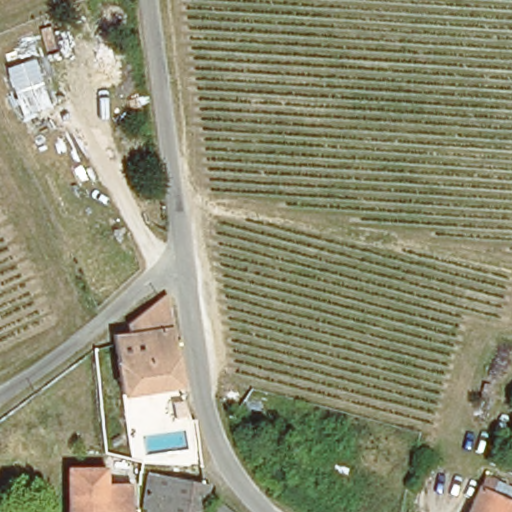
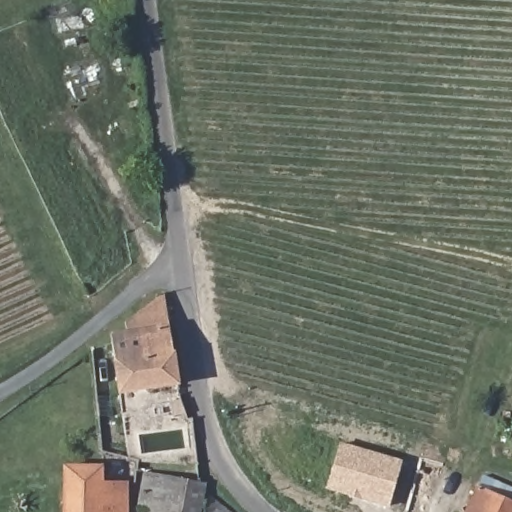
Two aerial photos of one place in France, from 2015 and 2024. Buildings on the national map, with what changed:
unchanged [(119,395),(111,337),(125,334),(123,322),(163,295),(167,327),(176,386),(119,395)]
unchanged [(193,459),(188,421),(200,419),(206,457),(193,459)]
new [(404,461),(390,509),(327,491),(341,443),(404,461)]
unchanged [(64,471),(101,471),(101,485),(126,486),(126,512),(62,512),(64,471)]
unchanged [(136,508),(141,479),(199,490),(193,512),(161,512),(136,508)]
unchanged [(512,502),(512,512),(466,512),(478,485),(512,502)]
unchanged [(208,490),(238,512),(203,512),(208,490)]

